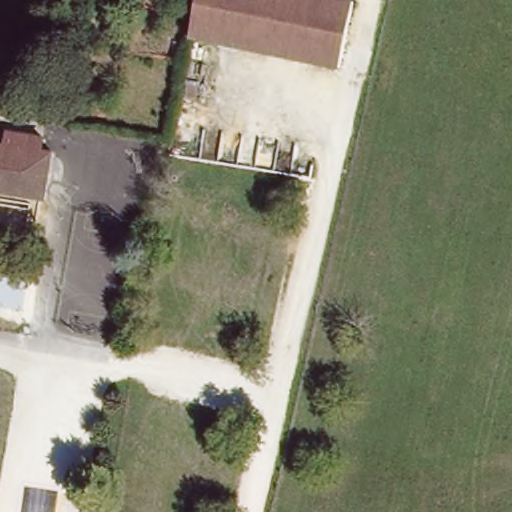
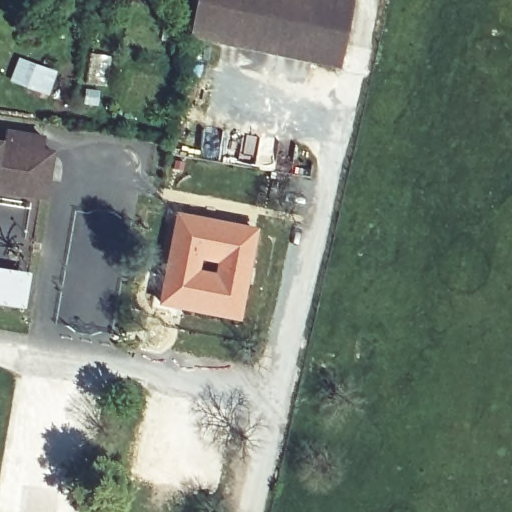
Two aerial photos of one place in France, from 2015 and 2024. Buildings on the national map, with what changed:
unchanged [(195,38),(201,0),(329,0),(315,62),(195,38)]
unchanged [(315,62),(329,0),(353,0),(339,67),(315,62)]
unchanged [(48,152),(60,154),(51,203),(5,195),(14,146),(15,137),(50,143),(48,152)]
unchanged [(5,195),(0,195),(0,144),(14,146),(5,195)]
new [(175,210),(257,227),(239,321),(155,305),(175,210)]
new [(25,309),(0,305),(0,268),(30,273),(25,309)]

